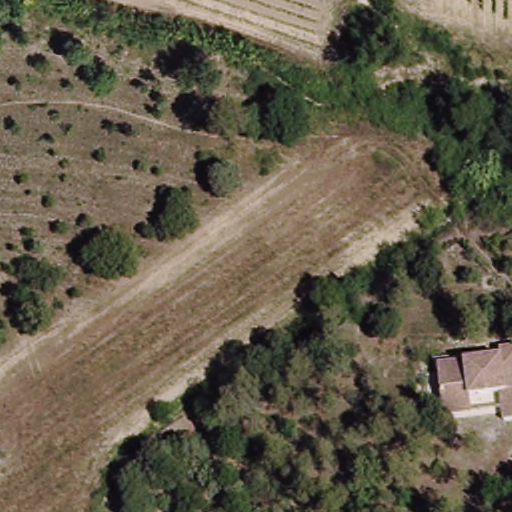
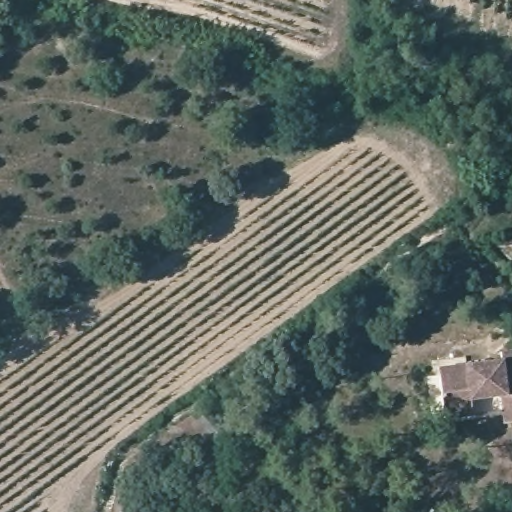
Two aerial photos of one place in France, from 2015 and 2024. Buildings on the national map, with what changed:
unchanged [(446,405),(444,370),(443,363),(470,361),(507,360),(506,350),(512,350),(512,421),(506,421),(504,395),(472,396),(473,404),(473,411),(446,413),(446,405)]

